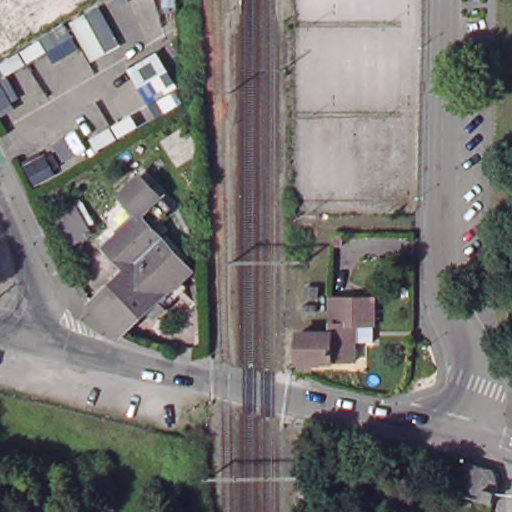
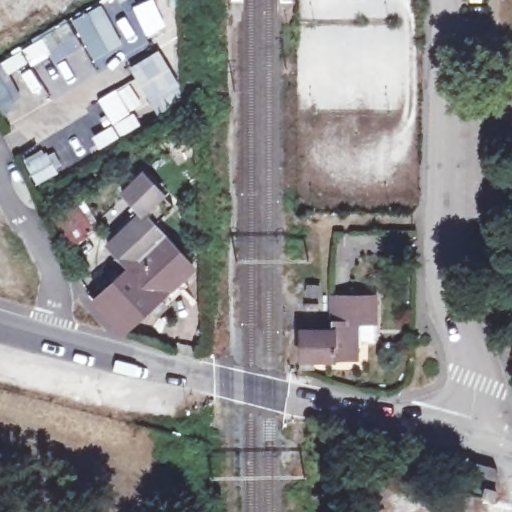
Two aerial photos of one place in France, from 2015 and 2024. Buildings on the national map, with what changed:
unchanged [(98,40),(85,17),(83,12),(88,9),(89,9),(104,0),(119,29),(98,40)]
unchanged [(30,42),(37,40),(43,50),(30,57),(24,47),(30,42)]
unchanged [(10,55),(22,48),(27,59),(15,67),(9,56),(10,55)]
unchanged [(117,127),(130,119),(137,131),(124,138),(117,127)]
unchanged [(102,136),(115,128),(122,140),(109,147),(102,136)]
unchanged [(94,307),(130,274),(110,252),(143,221),(123,199),(144,180),(174,212),(154,232),(193,275),(124,340),(94,307)]
unchanged [(55,219),(74,207),(90,233),(70,244),(55,219)]
unchanged [(364,341),(364,360),(340,360),(340,362),(307,361),(307,332),(340,332),(340,323),(340,315),(340,297),(382,297),(382,324),(382,341),(364,341)]
unchanged [(499,470),(502,477),(504,482),(503,490),(501,502),(464,490),(475,463),(499,470)]

